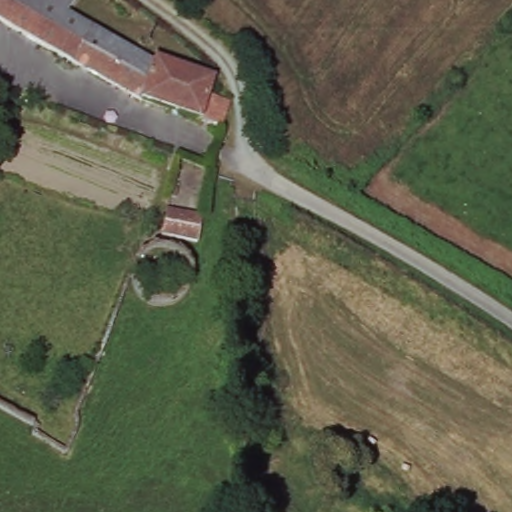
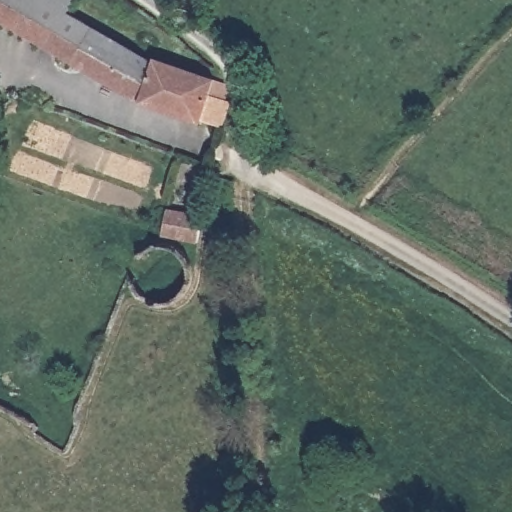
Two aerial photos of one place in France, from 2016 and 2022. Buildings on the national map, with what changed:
unchanged [(0,23),(0,0),(72,0),(64,16),(79,23),(80,29),(149,67),(139,102),(136,101),(0,23)]
unchanged [(139,102),(149,67),(151,61),(227,85),(222,99),(228,101),(219,126),(139,102)]
unchanged [(196,239),(161,232),(166,207),(202,213),(196,239)]

